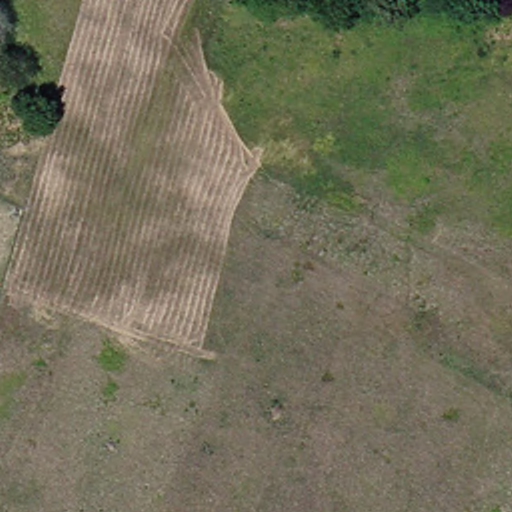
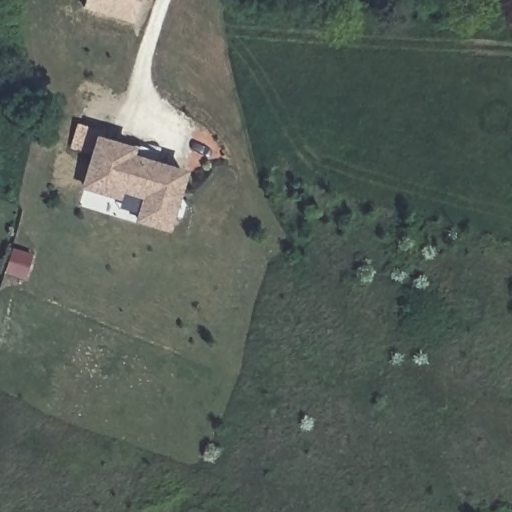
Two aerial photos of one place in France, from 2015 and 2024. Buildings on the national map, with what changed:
new [(142,0),(136,20),(86,5),(88,0),(142,0)]
new [(139,149),(136,157),(187,171),(171,232),(135,222),(141,199),(123,192),(119,202),(83,192),(98,138),(139,149)]
new [(15,250),(35,256),(28,279),(8,274),(15,250)]

